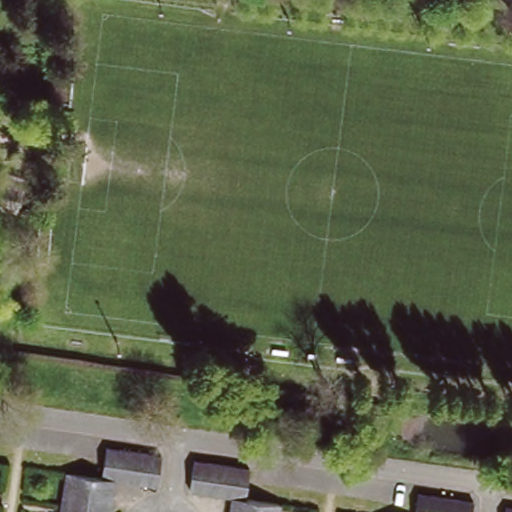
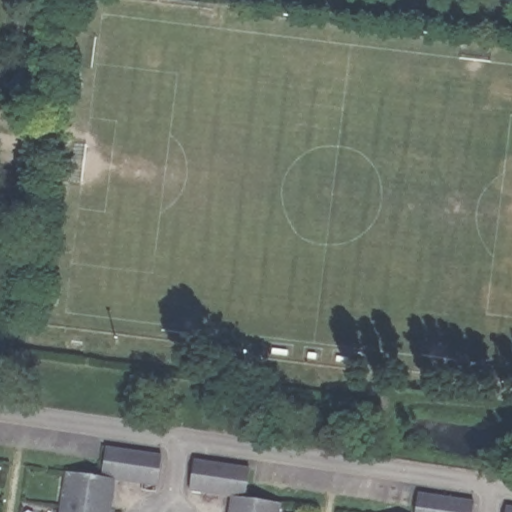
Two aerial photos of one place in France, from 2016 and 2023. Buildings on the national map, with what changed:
unchanged [(61,509),(63,493),(66,472),(92,476),(101,477),(105,447),(113,449),(160,455),(156,485),(139,483),(114,479),(111,501),(109,512),(61,512),(61,509)]
unchanged [(231,497),(187,491),(191,464),(191,461),(247,470),(245,499),(278,504),(277,512),(229,512),(231,497)]
unchanged [(417,494),(426,495),(471,502),(470,512),(415,512),(417,494)]
unchanged [(505,510),(505,507),(512,508),(512,512),(505,512),(505,510)]

